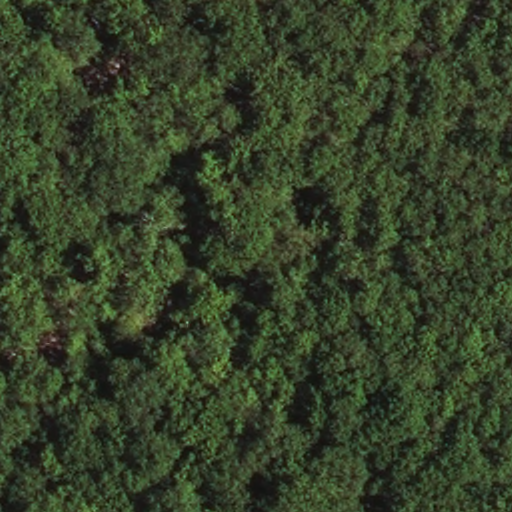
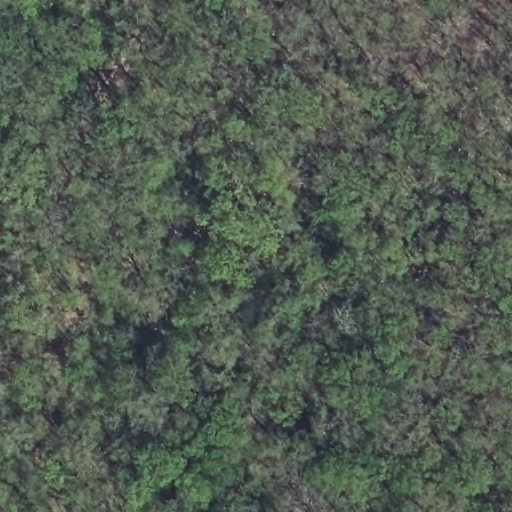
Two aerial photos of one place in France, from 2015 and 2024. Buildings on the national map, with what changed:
[]

